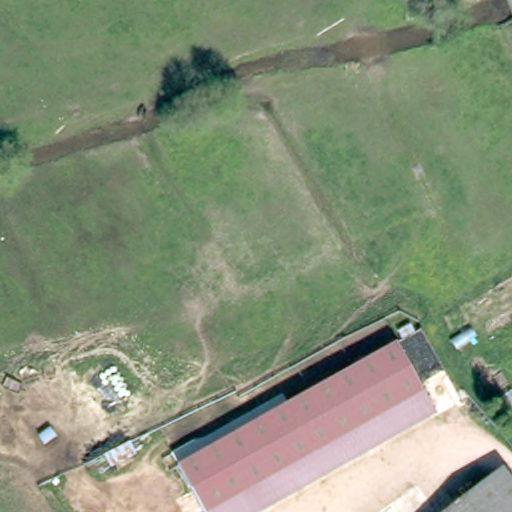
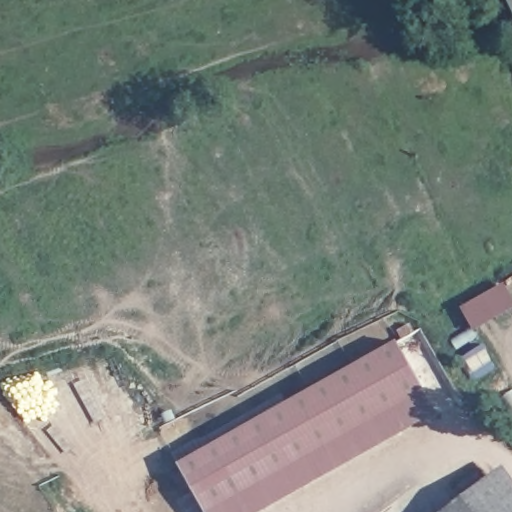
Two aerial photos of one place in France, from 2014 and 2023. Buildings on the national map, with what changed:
new [(473,330),(460,307),(504,282),(512,297),(512,309),(473,330)]
unchanged [(390,338),(427,407),(237,512),(198,512),(169,458),(390,338)]
new [(512,478),(512,512),(488,480),(504,468),(512,478)]
unchanged [(512,512),(446,512),(488,480),(512,512)]

